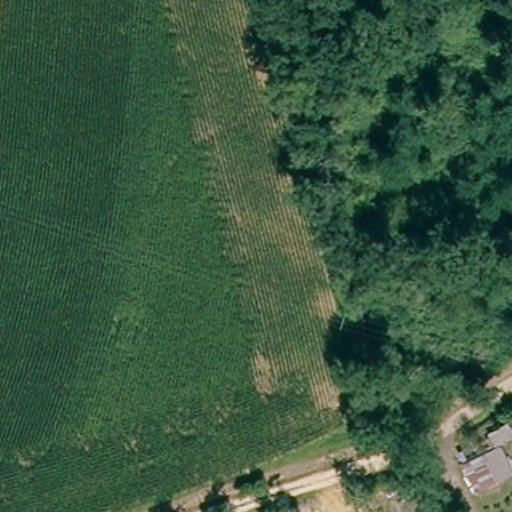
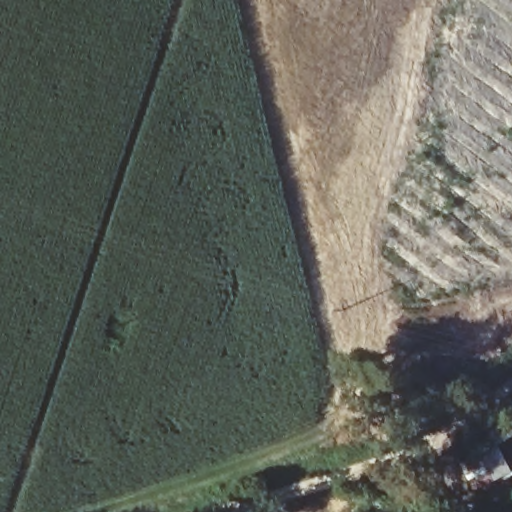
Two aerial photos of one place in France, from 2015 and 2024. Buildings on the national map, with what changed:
unchanged [(466,462),(497,446),(491,435),(512,424),(512,442),(509,444),(512,451),(512,481),(481,492),(466,462)]

